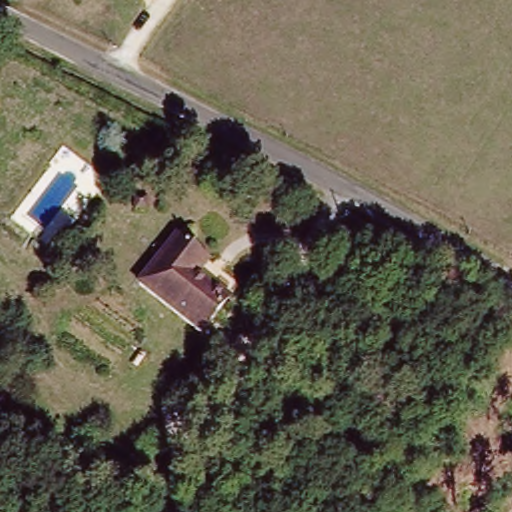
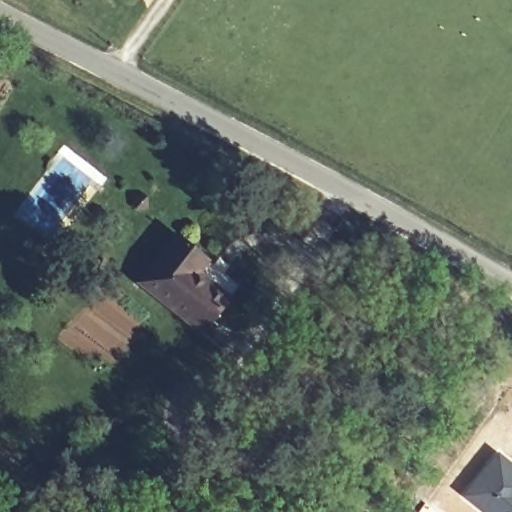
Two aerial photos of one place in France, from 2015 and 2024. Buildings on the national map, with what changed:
unchanged [(135,286),(172,237),(195,255),(235,285),(228,296),(198,335),(135,286)]
new [(498,451),(512,463),(512,512),(483,512),(465,496),(498,451)]

